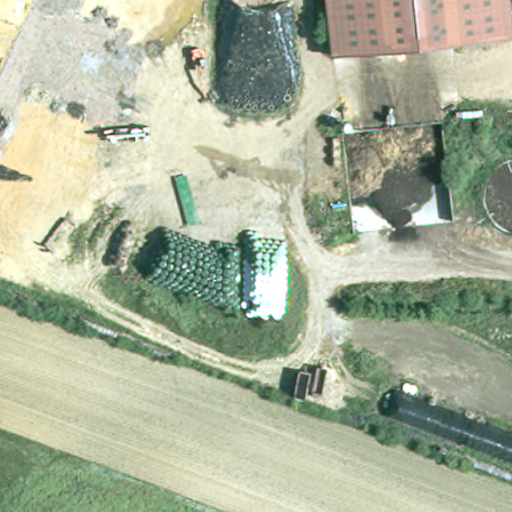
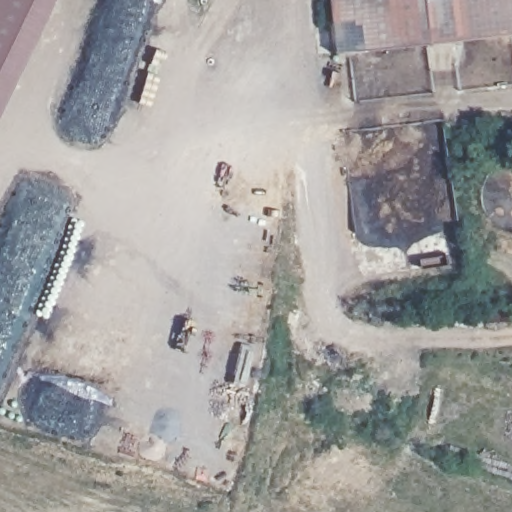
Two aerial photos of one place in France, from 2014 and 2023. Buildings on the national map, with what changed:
new [(0,97),(0,0),(47,0),(0,97)]
unchanged [(511,34),(332,54),(326,0),(507,0),(511,34)]

